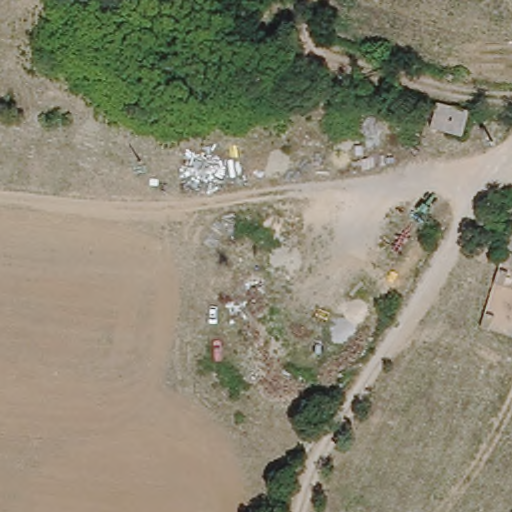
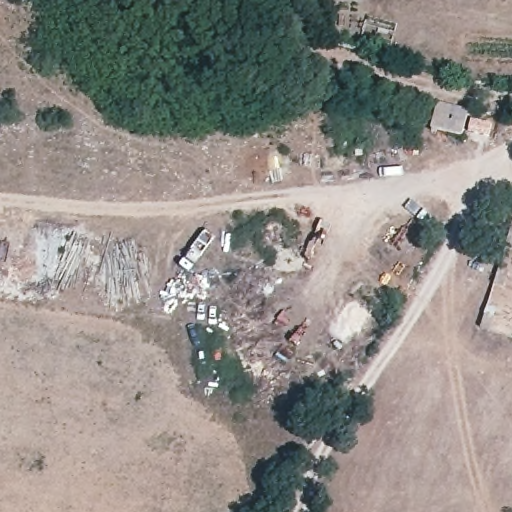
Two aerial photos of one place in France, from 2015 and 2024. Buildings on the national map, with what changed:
unchanged [(464,136),(424,127),(431,104),(469,111),(464,136)]

